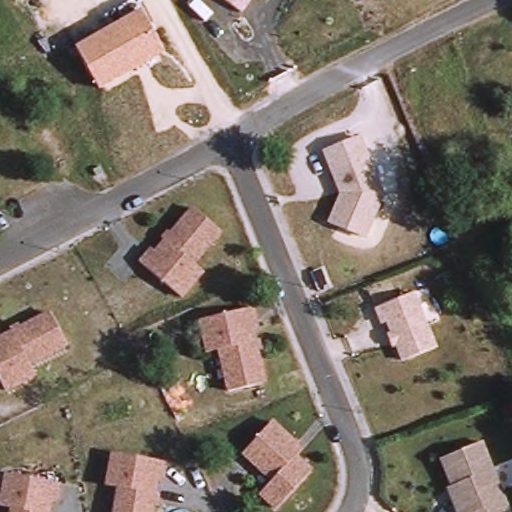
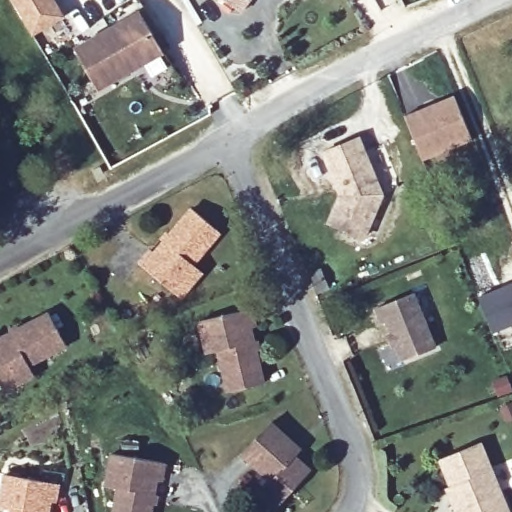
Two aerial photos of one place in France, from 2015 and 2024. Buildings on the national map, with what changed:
new [(40,30),(27,9),(22,0),(63,0),(70,13),(40,30)]
unchanged [(241,15),(223,0),(253,0),(241,15)]
unchanged [(162,53),(100,89),(75,46),(138,11),(162,53)]
new [(456,96),(474,140),(425,160),(408,116),(456,96)]
unchanged [(328,220),(340,190),(323,151),(363,135),(386,194),(365,240),(328,220)]
unchanged [(192,281),(182,294),(142,262),(153,248),(157,251),(193,207),(220,229),(193,262),(202,269),(192,281)]
new [(512,323),(495,331),(480,295),(512,281),(512,323)]
unchanged [(438,350),(407,362),(390,324),(387,325),(380,311),(415,295),(438,350)]
unchanged [(22,380),(6,388),(0,375),(0,337),(50,311),(68,342),(30,362),(35,372),(22,380)]
unchanged [(209,355),(205,339),(201,323),(252,311),(256,328),(251,330),(264,386),(229,394),(220,352),(209,355)]
unchanged [(273,483),(243,456),(271,425),(297,449),(291,455),(312,473),(278,512),(261,497),(273,483)]
unchanged [(480,439),(510,512),(459,512),(452,496),(448,485),(451,483),(441,456),(480,439)]
unchanged [(163,482),(159,482),(153,512),(117,512),(120,490),(109,488),(112,473),(114,456),(166,465),(163,482)]
unchanged [(51,512),(13,512),(13,510),(2,507),(5,492),(8,475),(58,486),(51,512)]

